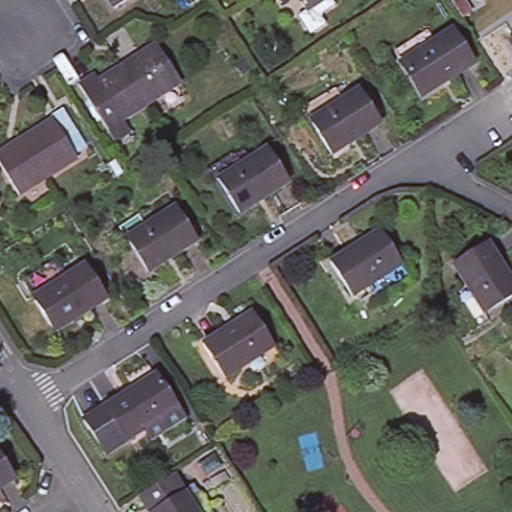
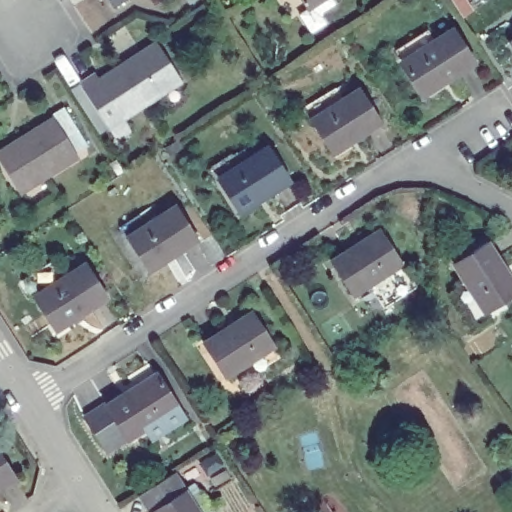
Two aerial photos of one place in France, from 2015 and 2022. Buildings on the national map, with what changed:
unchanged [(112,0),(129,0),(117,8),(112,0)]
unchanged [(321,8),(325,16),(310,24),(301,6),(307,2),(306,0),(329,0),(325,2),(321,8)]
unchanged [(420,48),(451,28),(472,60),(422,92),(401,60),(420,48)]
unchanged [(82,83),(94,76),(96,79),(154,42),(178,81),(120,118),(118,114),(107,121),(82,83)]
unchanged [(329,106),(362,84),(383,116),(334,149),(312,116),(329,106)]
unchanged [(22,186),(0,149),(0,146),(55,112),(53,109),(65,102),(88,141),(78,147),(80,151),(22,186)]
unchanged [(294,173),(243,206),(221,173),(273,140),(294,173)]
unchanged [(146,223),(180,202),(200,234),(149,268),(128,234),(146,223)]
unchanged [(408,257),(360,289),(338,257),(387,225),(408,257)]
unchanged [(512,299),(486,315),(455,266),(490,244),(512,279),(512,299)]
unchanged [(86,261),(108,294),(56,328),(35,295),(86,261)]
unchanged [(255,313),(275,346),(226,376),(206,344),(255,313)]
unchanged [(153,444),(146,433),(131,443),(123,431),(105,443),(85,410),(107,396),(115,407),(160,379),(180,412),(187,422),(153,444)]
unchanged [(20,472),(0,484),(0,441),(20,472)]
unchanged [(141,492),(176,465),(210,512),(154,512),(141,492)]

